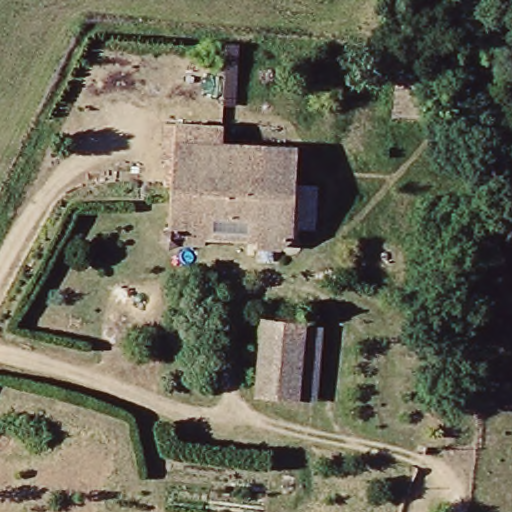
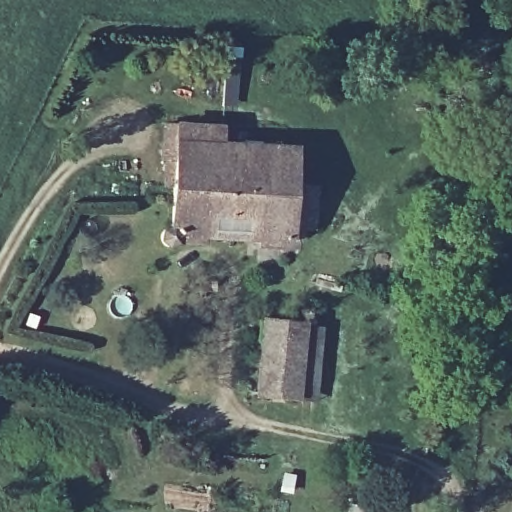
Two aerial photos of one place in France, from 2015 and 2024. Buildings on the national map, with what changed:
unchanged [(172,122),(215,124),(214,143),(289,146),(288,183),(309,185),(308,230),(285,229),(284,236),(277,240),(250,238),(251,229),(200,228),(199,236),(173,235),(174,239),(174,244),(173,248),(170,252),(166,254),(162,255),(158,254),(154,253),(152,252),(150,248),(148,244),(148,239),(149,235),(153,231),(157,229),(161,228),(166,229),(172,122)]
unchanged [(303,401),(262,399),(266,325),(299,324),(307,324),(305,367),(303,401)]

